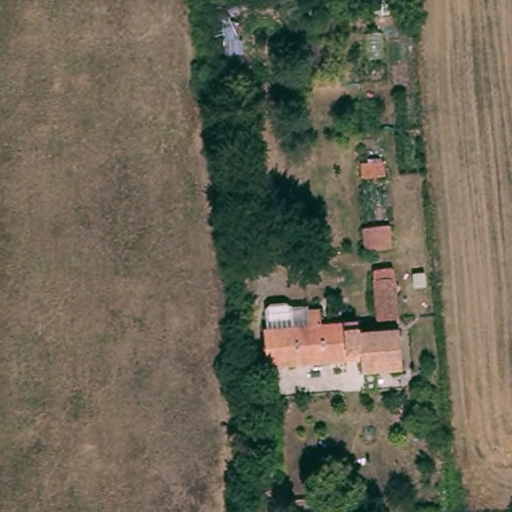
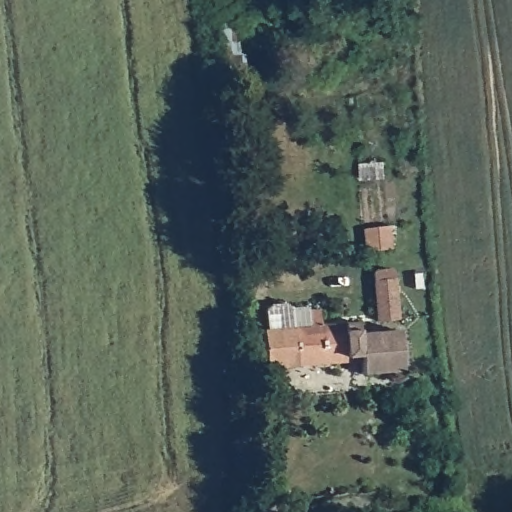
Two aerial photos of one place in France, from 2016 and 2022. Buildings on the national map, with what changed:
unchanged [(391,147),(392,162),(369,164),(368,150),(391,147)]
unchanged [(398,236),(372,239),(370,216),(396,214),(398,236)]
unchanged [(401,277),(405,318),(380,322),(377,280),(401,277)]
unchanged [(315,326),(313,311),(325,310),(326,325),(363,322),(364,334),(405,331),(407,372),(367,375),(366,361),(271,369),(268,330),(315,326)]

